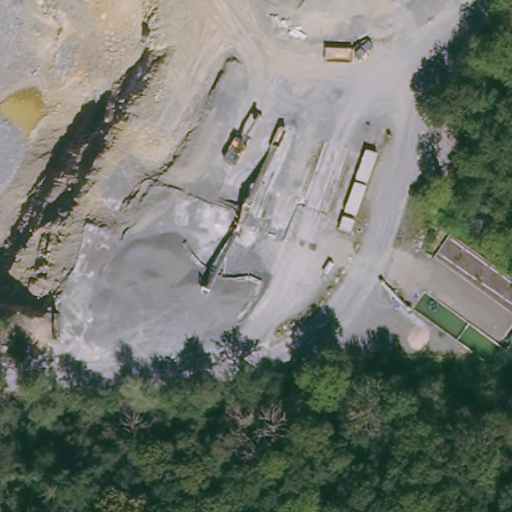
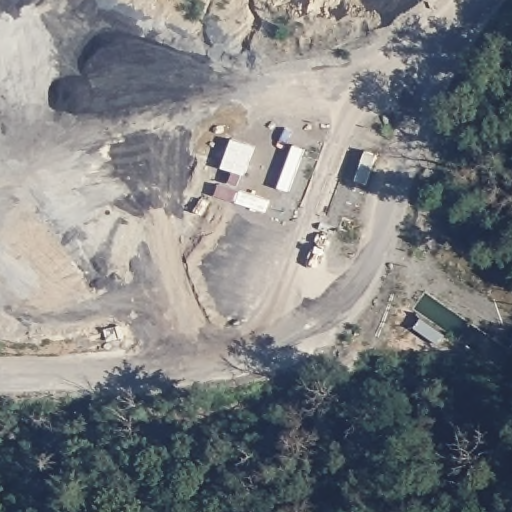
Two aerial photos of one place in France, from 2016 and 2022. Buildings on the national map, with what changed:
unchanged [(367,185),(352,180),(363,151),(377,156),(367,185)]

